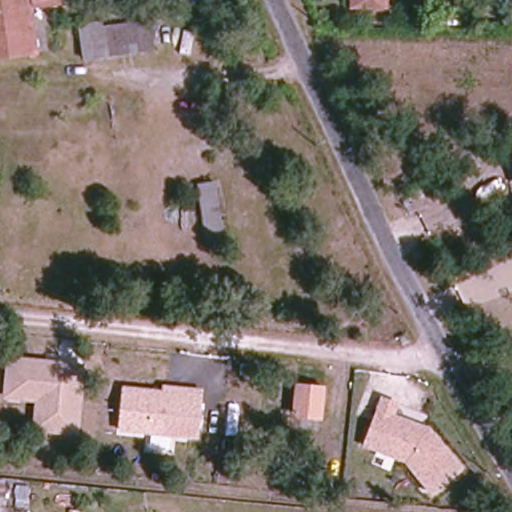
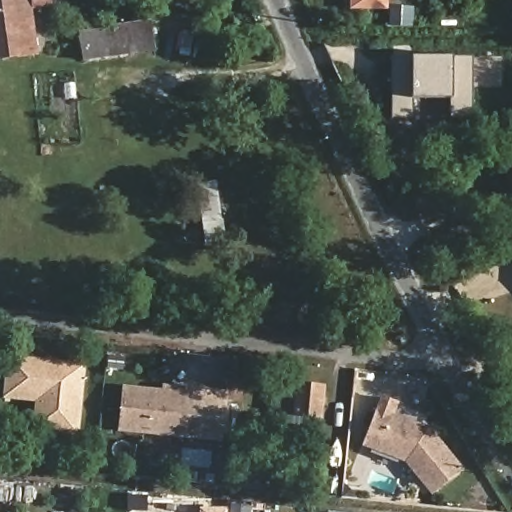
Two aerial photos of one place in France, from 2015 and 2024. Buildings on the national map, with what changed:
unchanged [(0,0),(57,0),(58,5),(31,9),(37,53),(0,59),(0,0)]
unchanged [(348,10),(349,0),(386,0),(385,10),(348,10)]
unchanged [(512,1),(512,35),(510,35),(512,1)]
unchanged [(81,60),(79,24),(150,21),(153,51),(81,60)]
new [(391,57),(410,57),(450,56),(472,56),(470,120),(449,120),(449,99),(411,98),(411,119),(390,119),(391,57)]
unchanged [(510,156),(512,156),(512,166),(510,156)]
unchanged [(205,244),(196,187),(214,183),(225,241),(205,244)]
unchanged [(171,292),(172,281),(192,284),(191,295),(171,292)]
unchanged [(1,401),(5,355),(85,362),(78,438),(29,436),(33,403),(1,401)]
unchanged [(115,433),(122,387),(161,390),(161,386),(202,390),(197,439),(115,433)]
new [(301,386),(327,391),(322,421),(296,416),(301,386)]
unchanged [(379,396),(398,403),(395,416),(429,429),(462,468),(427,496),(404,463),(363,448),(379,396)]
unchanged [(5,512),(0,512),(0,477),(7,478),(5,512)]
new [(198,508),(227,508),(227,512),(198,512),(198,508)]

